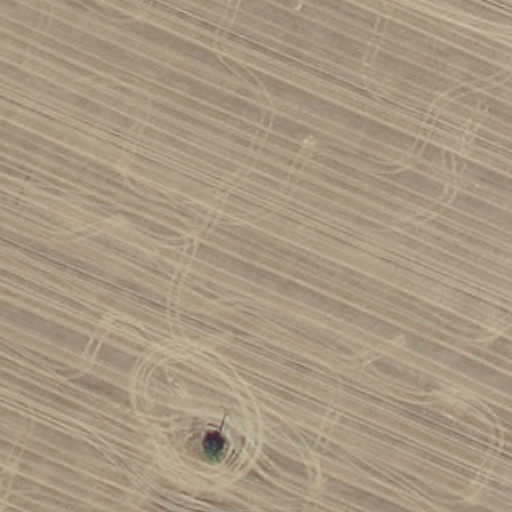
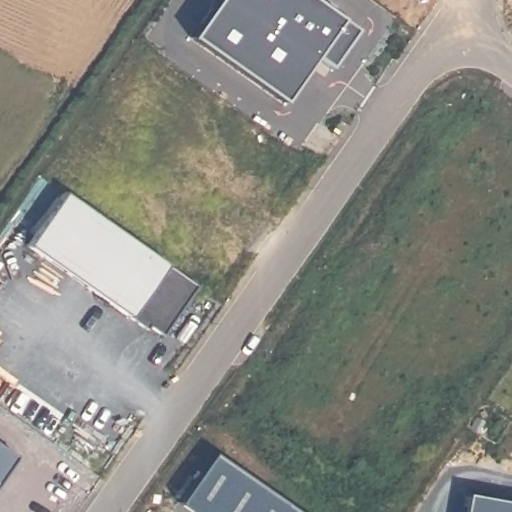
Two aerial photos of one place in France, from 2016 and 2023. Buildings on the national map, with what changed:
new [(312,0),(355,31),(329,69),(310,57),(281,100),(192,38),(218,0),(312,0)]
new [(195,284),(160,335),(136,319),(131,329),(25,251),(68,192),(195,284)]
new [(0,486),(0,452),(15,465),(0,486)]
new [(212,453),(297,512),(191,512),(177,503),(212,453)]
new [(512,495),(512,512),(459,512),(462,486),(512,495)]

